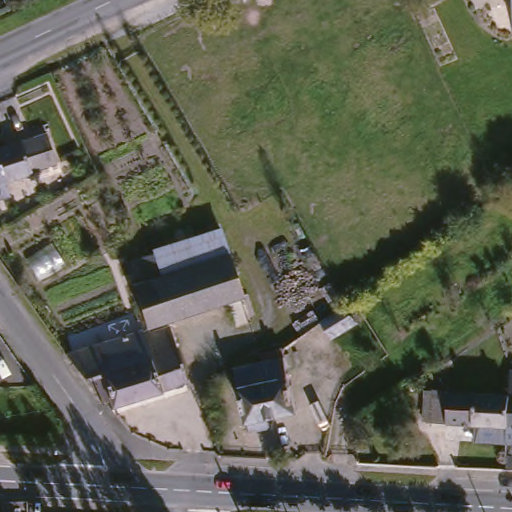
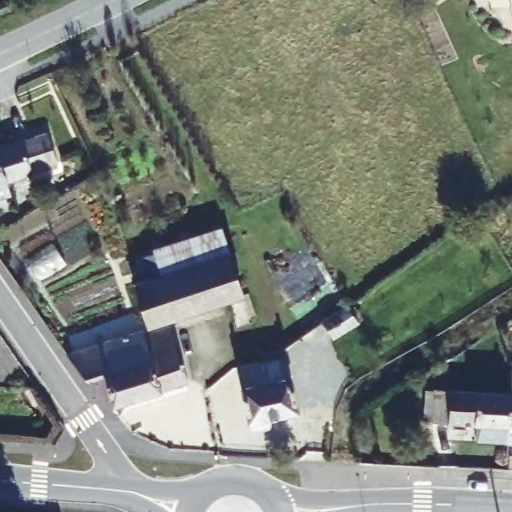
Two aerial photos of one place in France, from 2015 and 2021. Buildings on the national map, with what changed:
unchanged [(507,10),(506,0),(512,0),(512,10),(507,10)]
unchanged [(48,162),(24,170),(22,172),(0,180),(0,145),(39,134),(48,162)]
unchanged [(0,191),(1,196),(0,196),(0,191)]
unchanged [(249,322),(234,327),(224,301),(145,326),(130,282),(140,278),(134,258),(151,252),(150,248),(218,227),(249,322)]
unchanged [(348,305),(349,303),(359,320),(335,337),(324,321),(348,305)]
unchanged [(184,381),(109,405),(106,398),(101,400),(64,353),(139,330),(141,335),(166,327),(184,381)]
unchanged [(295,411),(244,422),(233,367),(259,361),(257,350),(279,341),(291,336),(293,338),(282,354),(295,411)]
unchanged [(504,437),(505,421),(507,389),(508,363),(512,363),(512,438),(504,437)]
unchanged [(458,428),(458,417),(430,415),(420,415),(422,384),(431,385),(507,389),(505,421),(489,420),(488,430),(458,428)]

